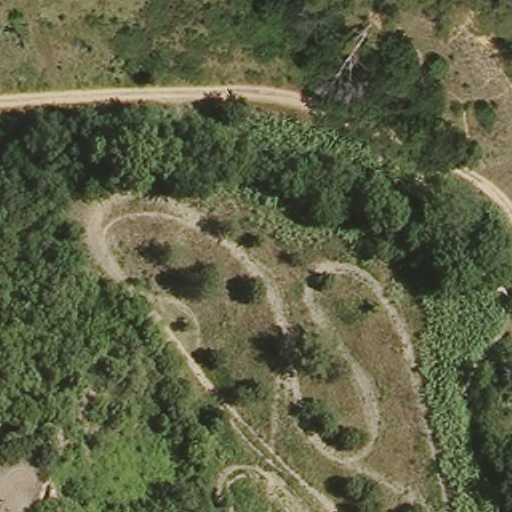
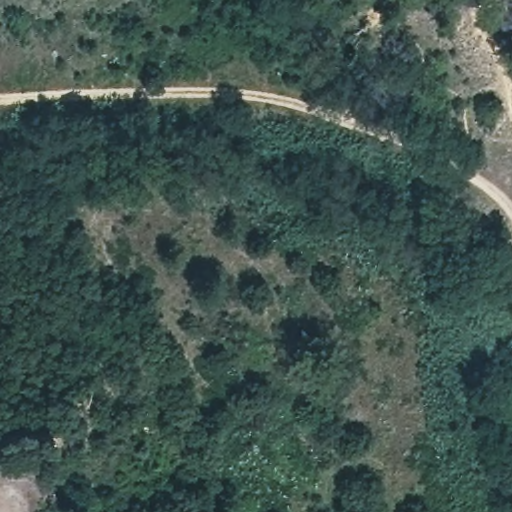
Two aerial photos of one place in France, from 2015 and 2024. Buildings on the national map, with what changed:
[]

